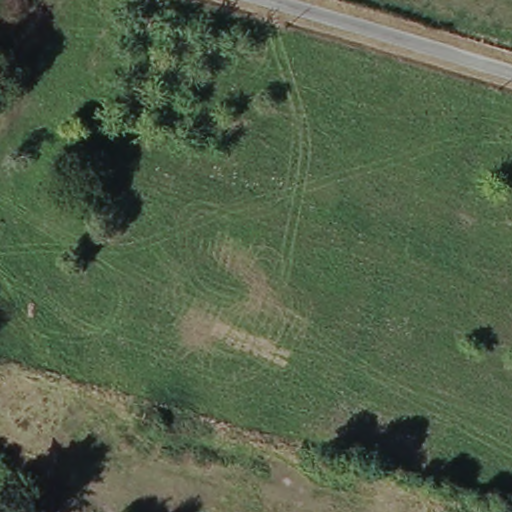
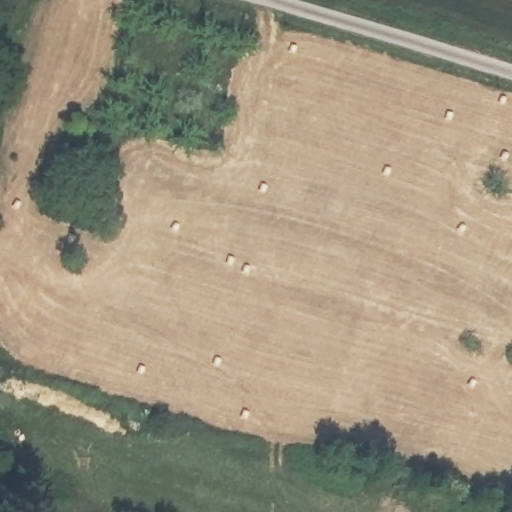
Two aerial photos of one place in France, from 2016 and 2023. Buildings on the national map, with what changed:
[]

